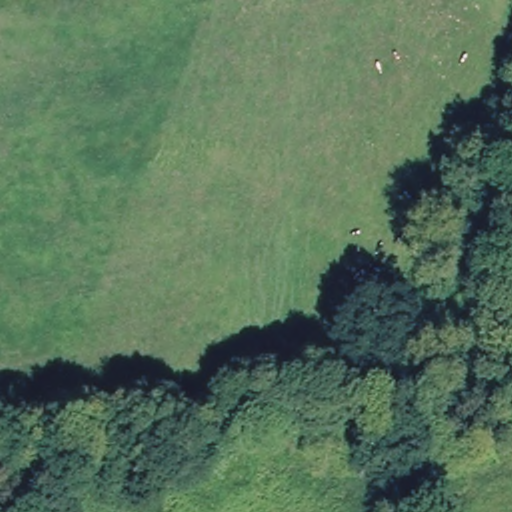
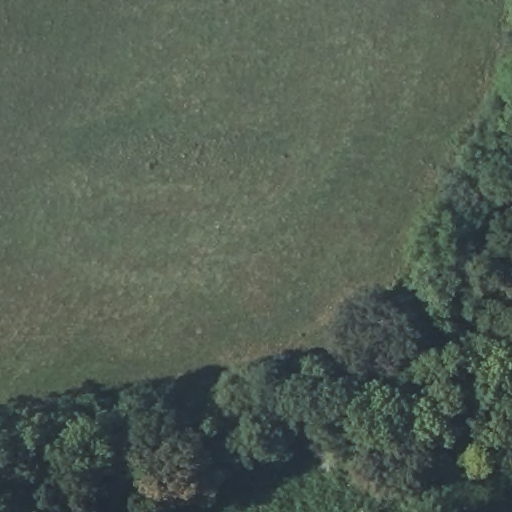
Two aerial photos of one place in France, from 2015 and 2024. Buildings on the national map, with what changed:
[]

